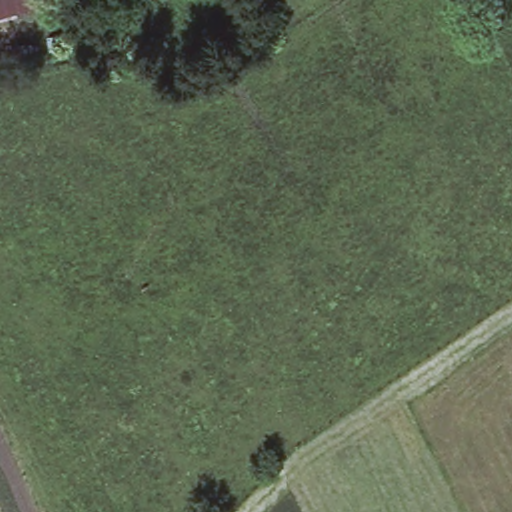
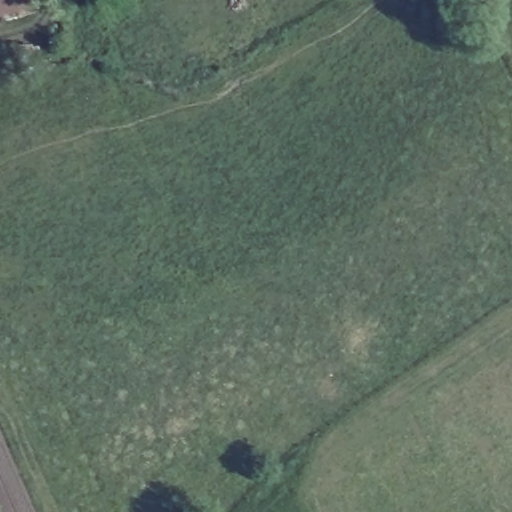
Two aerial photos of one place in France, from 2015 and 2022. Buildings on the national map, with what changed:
unchanged [(39,7),(0,15),(0,0),(37,0),(39,7)]

